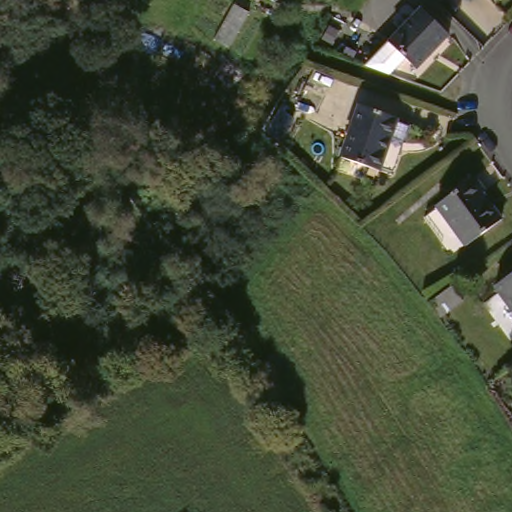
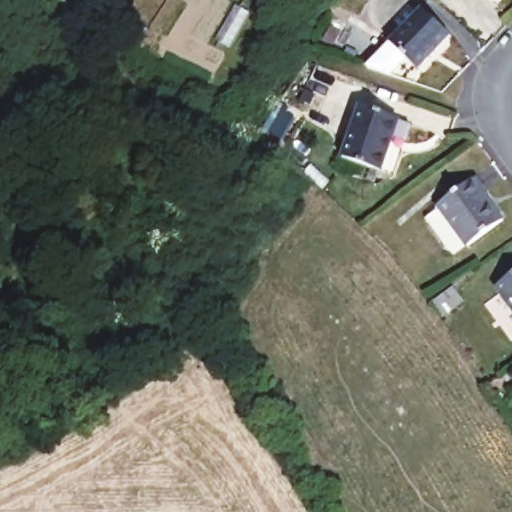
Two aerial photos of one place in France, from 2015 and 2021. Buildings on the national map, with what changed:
unchanged [(490,0),(500,0),(495,5),(490,0)]
unchanged [(452,36),(419,72),(408,61),(392,79),(389,78),(368,70),(424,10),(452,36)]
unchanged [(384,174),(346,160),(363,108),(402,121),(384,174)]
unchanged [(263,136),(275,114),(288,120),(277,143),(263,136)]
unchanged [(506,218),(471,244),(440,203),(478,175),(488,189),(486,191),(506,218)]
unchanged [(499,284),(512,274),(512,301),(499,284)]
unchanged [(457,304),(435,320),(425,306),(447,289),(457,304)]

